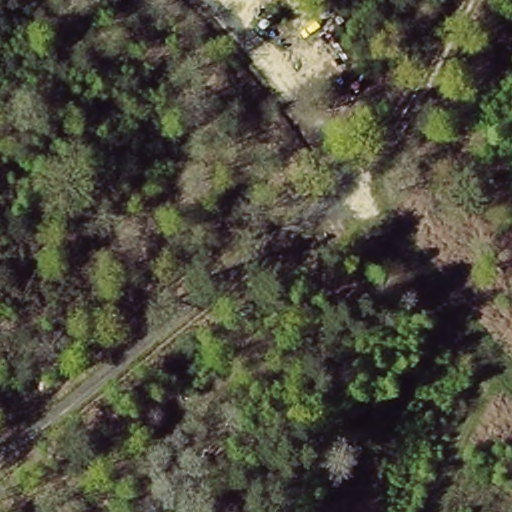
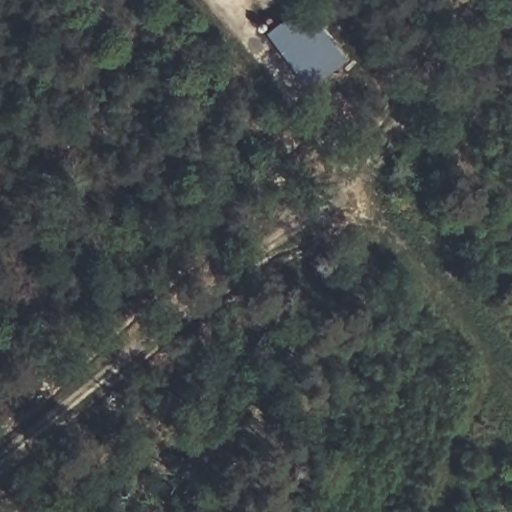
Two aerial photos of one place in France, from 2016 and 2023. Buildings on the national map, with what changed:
new [(310,85),(269,29),(307,1),(348,57),(310,85)]

